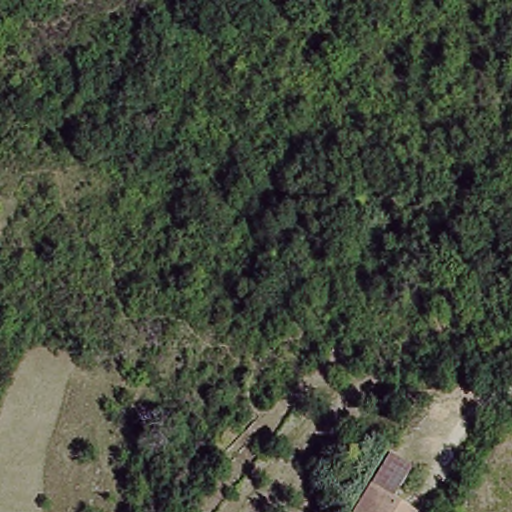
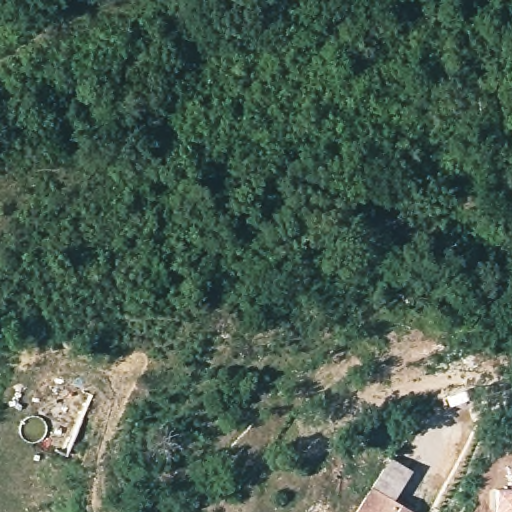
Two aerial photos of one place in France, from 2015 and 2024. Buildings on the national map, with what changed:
unchanged [(416,512),(355,512),(393,456),(414,470),(393,496),(416,512)]
new [(492,487),(512,487),(512,512),(493,512),(492,487)]

